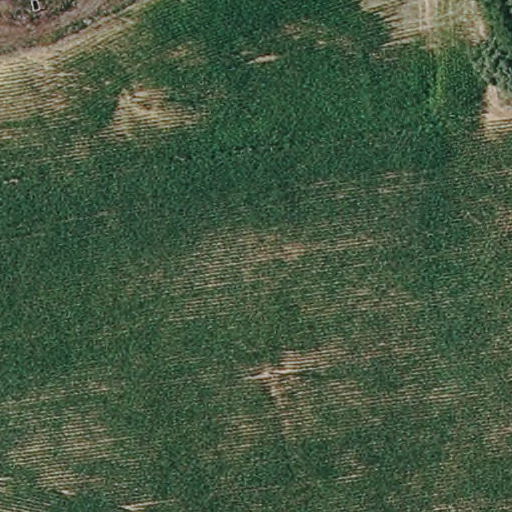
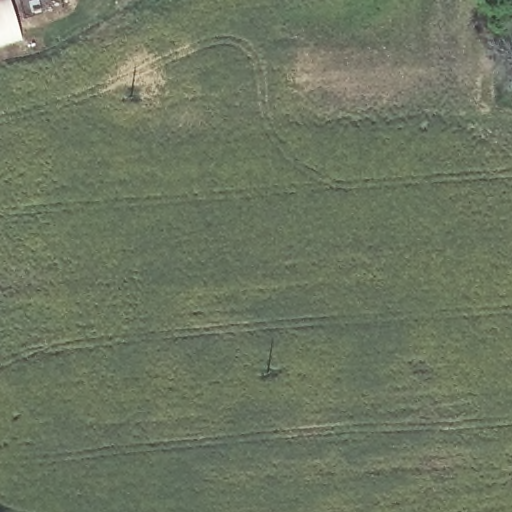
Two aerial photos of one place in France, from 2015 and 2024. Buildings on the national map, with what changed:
new [(13,10),(18,29),(11,31),(13,38),(0,42),(0,2),(4,0),(13,10)]

